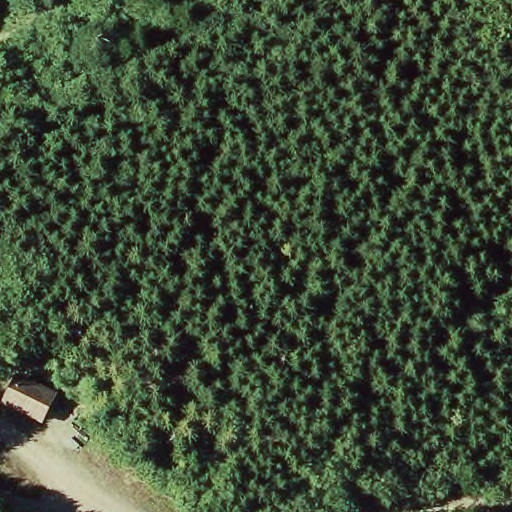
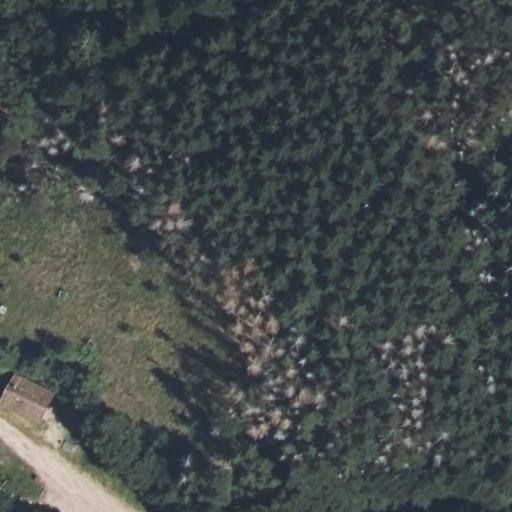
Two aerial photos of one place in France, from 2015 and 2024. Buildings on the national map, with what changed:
unchanged [(41,427),(0,409),(0,403),(13,378),(55,395),(41,427)]

